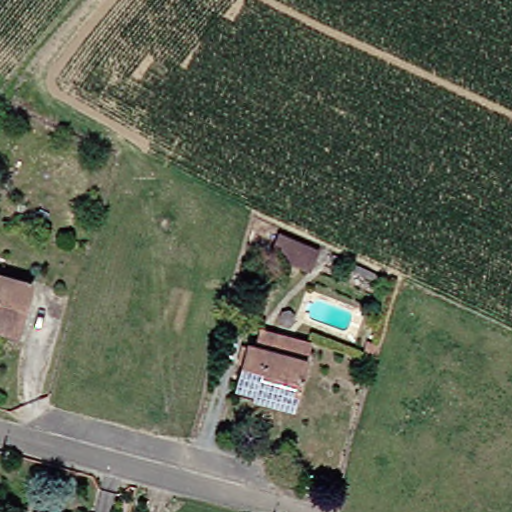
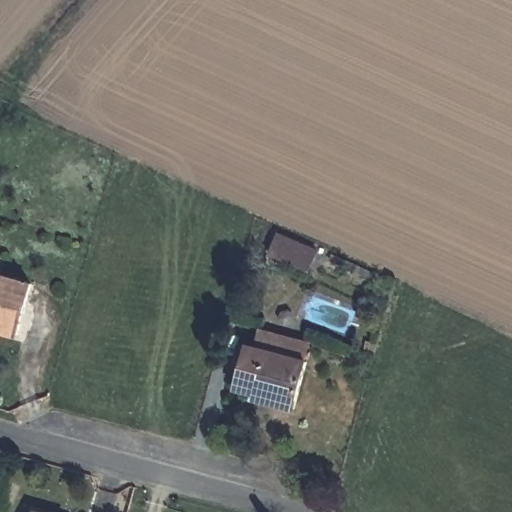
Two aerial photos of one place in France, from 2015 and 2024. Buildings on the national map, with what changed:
unchanged [(288,231),(327,249),(319,268),(279,250),(288,231)]
unchanged [(0,332),(0,277),(23,283),(9,334),(0,332)]
unchanged [(223,391),(239,338),(249,342),(254,326),(303,342),(298,358),(284,411),(223,391)]

